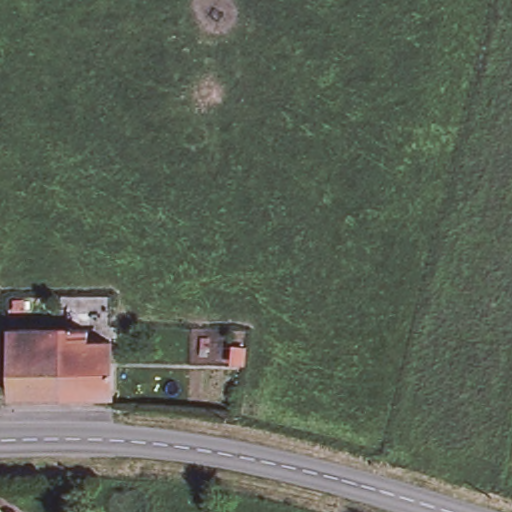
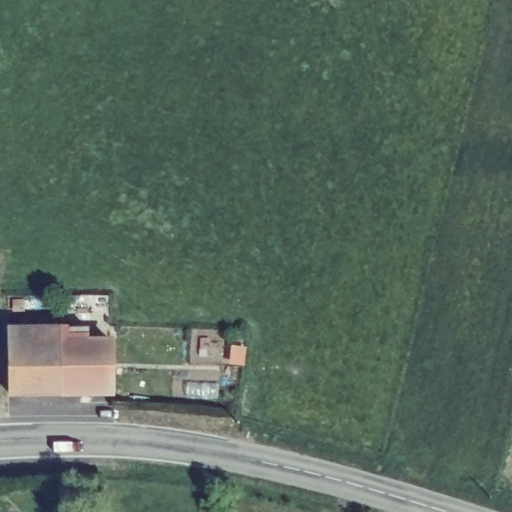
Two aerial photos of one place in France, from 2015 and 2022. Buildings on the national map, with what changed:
unchanged [(8,385),(7,322),(66,324),(66,332),(110,334),(110,352),(110,391),(8,385)]

